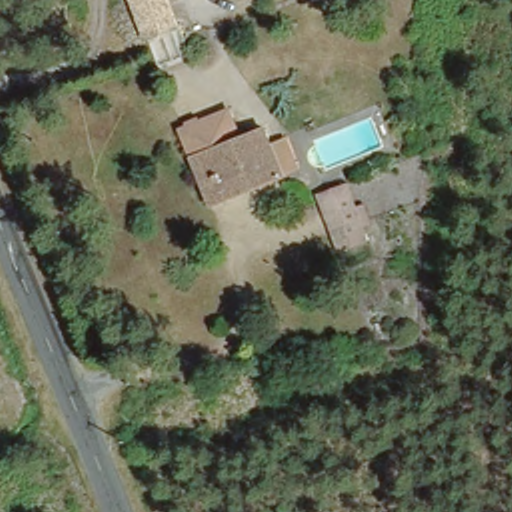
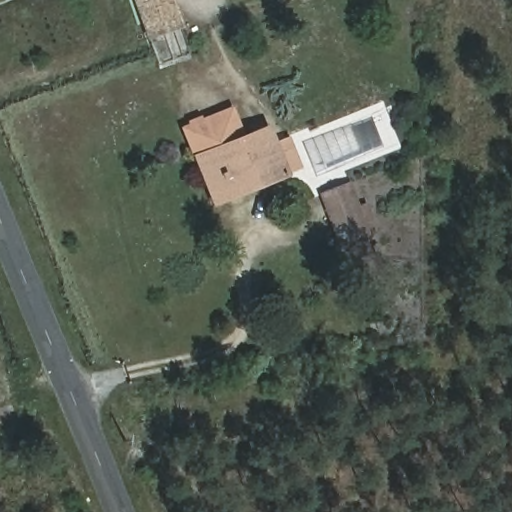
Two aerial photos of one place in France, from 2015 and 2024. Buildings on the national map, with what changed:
unchanged [(134,0),(166,0),(173,21),(146,30),(134,0)]
unchanged [(279,175),(213,201),(183,127),(232,107),(240,127),(257,120),(279,175)]
unchanged [(347,181),(353,200),(364,198),(374,228),(366,231),(368,237),(338,249),(314,189),(347,181)]

